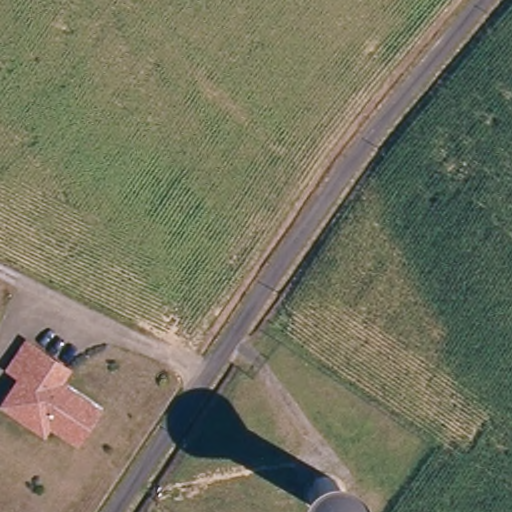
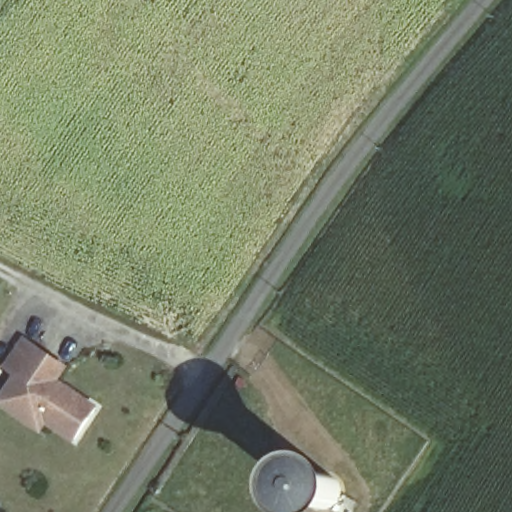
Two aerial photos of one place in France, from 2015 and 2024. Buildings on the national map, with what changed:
unchanged [(12,392),(21,377),(10,370),(28,343),(53,360),(67,369),(58,383),(97,410),(76,441),(49,423),(43,431),(20,416),(3,404),(12,392)]

